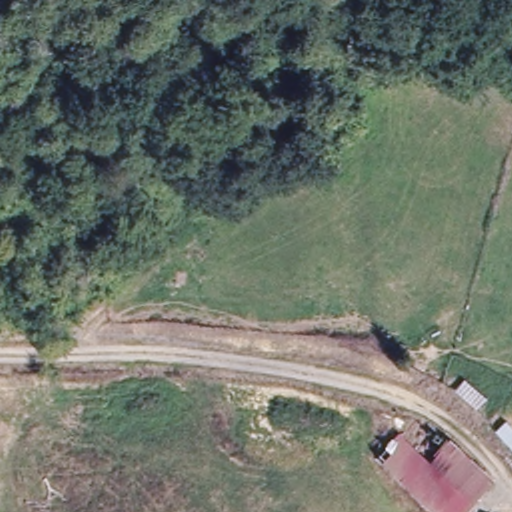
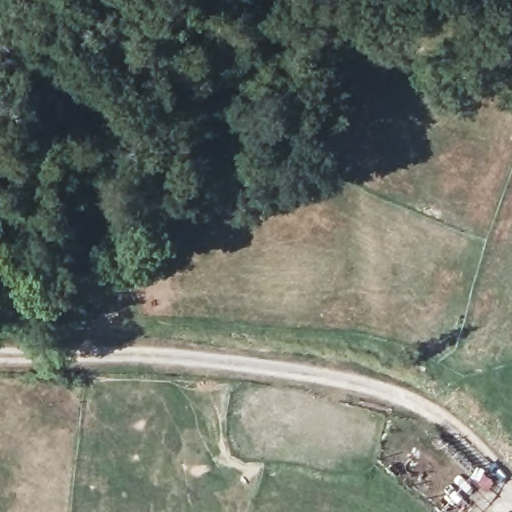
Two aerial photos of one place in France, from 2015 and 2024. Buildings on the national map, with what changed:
demolished [(478,407),(457,388),(467,379),(487,397),(478,407)]
demolished [(469,512),(430,512),(375,465),(399,437),(428,460),(445,443),(494,483),(469,512)]

